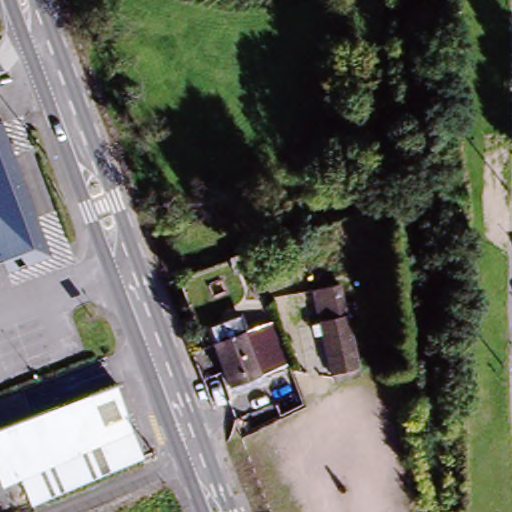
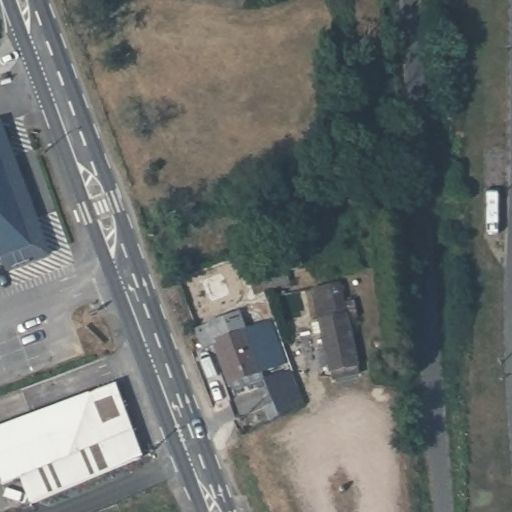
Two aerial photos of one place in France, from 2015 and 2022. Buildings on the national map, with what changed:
unchanged [(3,126),(42,244),(0,261),(0,127),(3,126)]
unchanged [(281,259),(291,284),(254,298),(246,271),(281,259)]
unchanged [(344,291),(364,374),(339,381),(318,298),(344,291)]
unchanged [(248,352),(243,339),(246,330),(271,324),(306,403),(281,420),(259,379),(254,367),(248,352)]
unchanged [(259,379),(228,391),(213,350),(243,339),(248,352),(254,367),(259,379)]
unchanged [(30,506),(19,478),(0,486),(0,484),(0,430),(111,388),(138,460),(30,506)]

